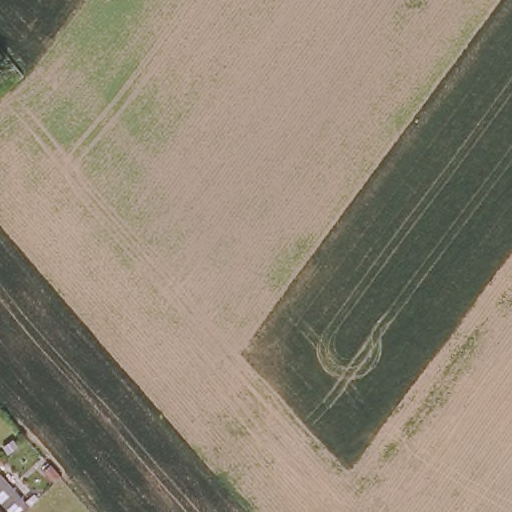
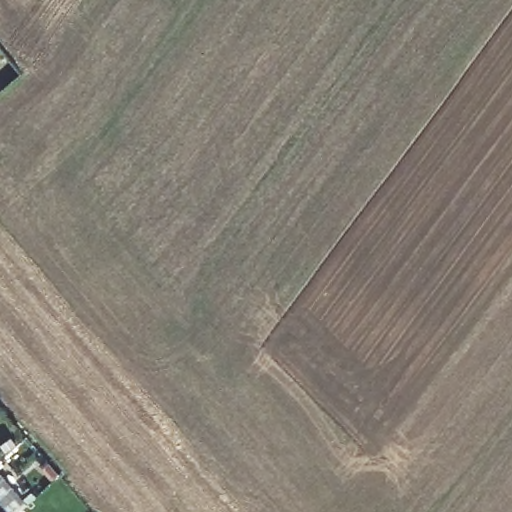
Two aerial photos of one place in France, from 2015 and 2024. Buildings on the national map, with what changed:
unchanged [(7,512),(0,512),(0,505),(7,512)]

